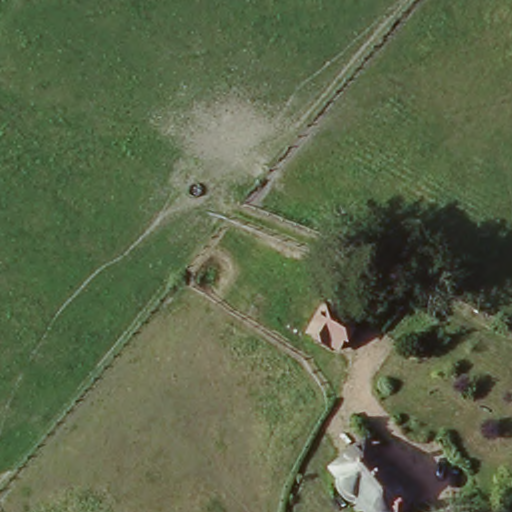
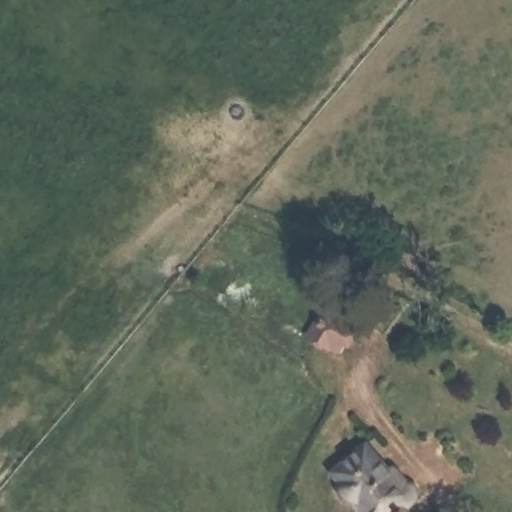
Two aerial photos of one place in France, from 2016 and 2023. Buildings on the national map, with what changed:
unchanged [(356,337),(341,363),(315,347),(329,320),(356,337)]
unchanged [(385,470),(388,466),(402,480),(405,478),(416,490),(405,500),(410,506),(404,512),(374,512),(355,491),(349,496),(336,482),(342,477),(335,469),(364,443),(385,470)]

